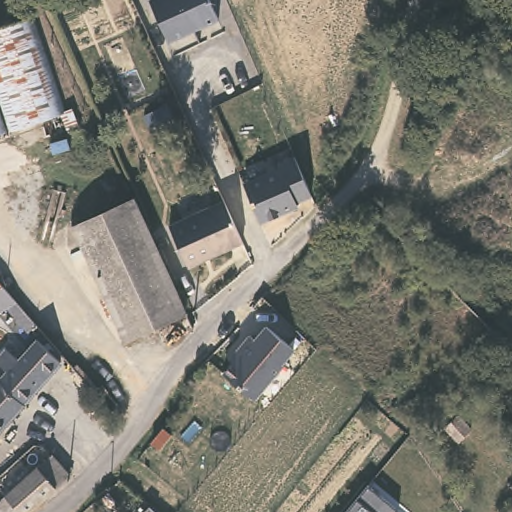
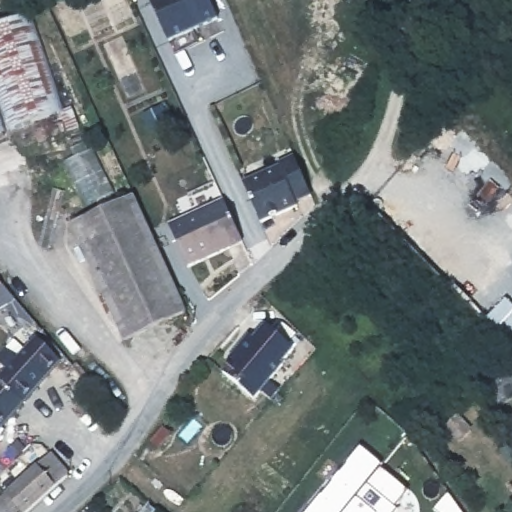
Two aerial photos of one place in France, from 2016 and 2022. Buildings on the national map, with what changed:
unchanged [(53,0),(62,0),(55,3),(53,0)]
unchanged [(168,41),(150,0),(211,0),(219,19),(168,41)]
unchanged [(71,105),(76,103),(84,123),(73,127),(65,107),(0,130),(0,23),(39,10),(71,105)]
unchanged [(308,185),(294,195),(296,200),(258,216),(240,177),(280,160),(277,155),(292,149),(308,185)]
unchanged [(190,308),(130,335),(77,220),(75,213),(81,210),(84,216),(138,193),(170,262),(190,308)]
unchanged [(242,236),(187,262),(169,219),(224,196),(242,236)]
unchanged [(0,284),(0,272),(6,280),(0,284)]
unchanged [(238,356),(235,353),(250,336),(255,340),(266,326),(294,350),(282,363),(283,365),(254,399),(224,373),(238,356)]
unchanged [(64,363),(61,366),(46,383),(0,434),(0,382),(36,344),(64,363)]
unchanged [(120,404),(115,411),(71,371),(77,366),(120,404)]
unchanged [(170,433),(160,448),(150,440),(162,426),(170,433)]
unchanged [(0,499),(10,490),(56,448),(75,468),(27,510),(25,512),(7,512),(0,504),(0,499)]
new [(360,448),(381,466),(366,484),(368,486),(346,512),(308,512),(360,448)]
unchanged [(368,486),(398,510),(397,512),(346,512),(368,486)]

